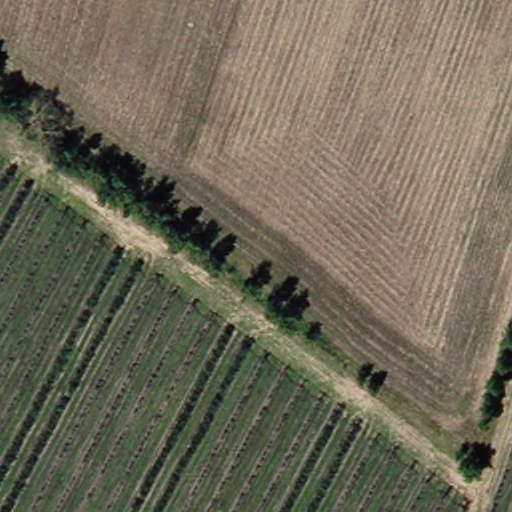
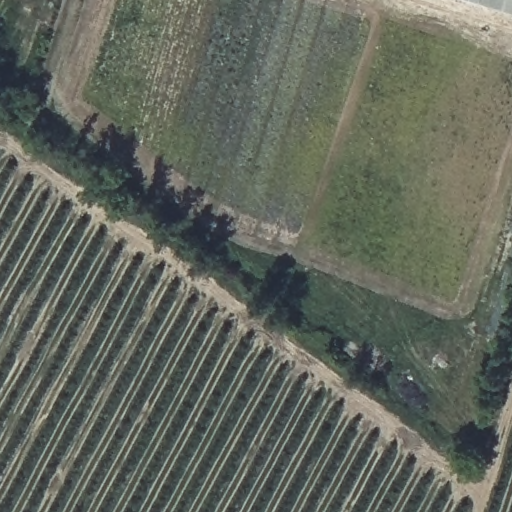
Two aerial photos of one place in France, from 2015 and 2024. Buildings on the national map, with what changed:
new [(470,0),(512,0),(512,13),(470,0)]

